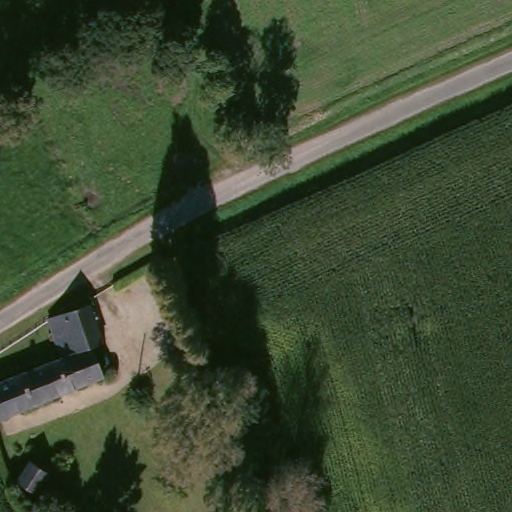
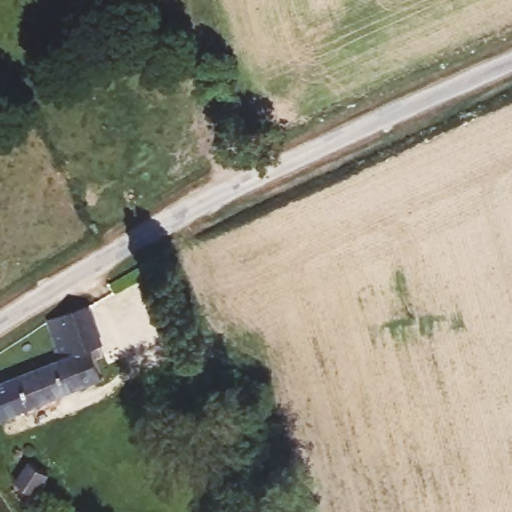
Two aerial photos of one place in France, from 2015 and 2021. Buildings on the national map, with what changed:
unchanged [(98,350),(82,355),(67,316),(90,306),(106,347),(98,350)]
unchanged [(1,421),(0,417),(0,384),(64,358),(55,329),(51,323),(67,316),(82,355),(98,350),(108,375),(1,421)]
unchanged [(30,463),(45,477),(34,495),(15,480),(30,463)]

